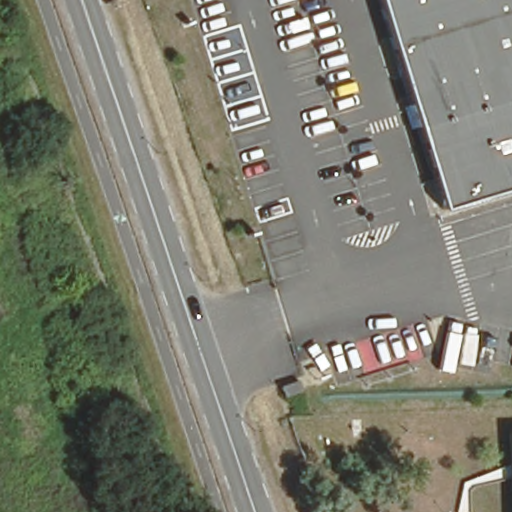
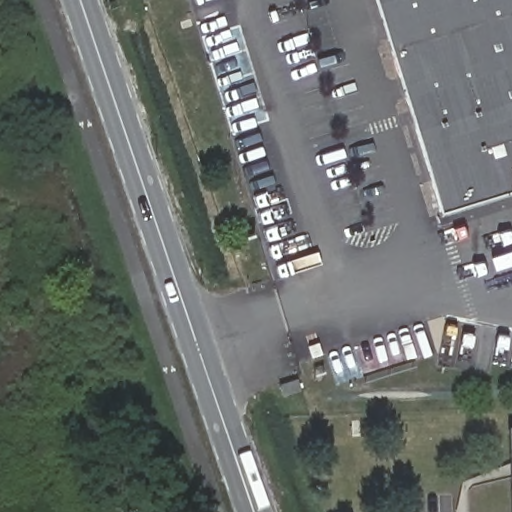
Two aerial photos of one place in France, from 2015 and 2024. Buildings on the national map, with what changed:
unchanged [(512,187),(439,209),(375,0),(512,0),(512,187)]

